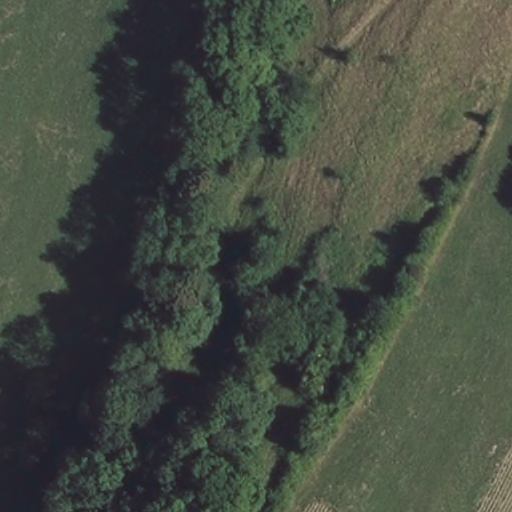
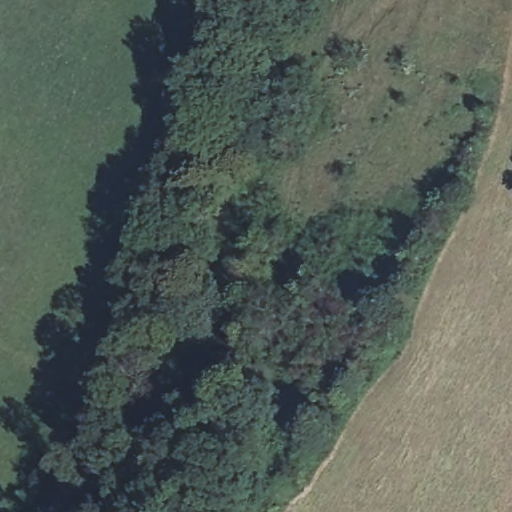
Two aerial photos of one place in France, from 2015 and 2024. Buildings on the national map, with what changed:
[]

